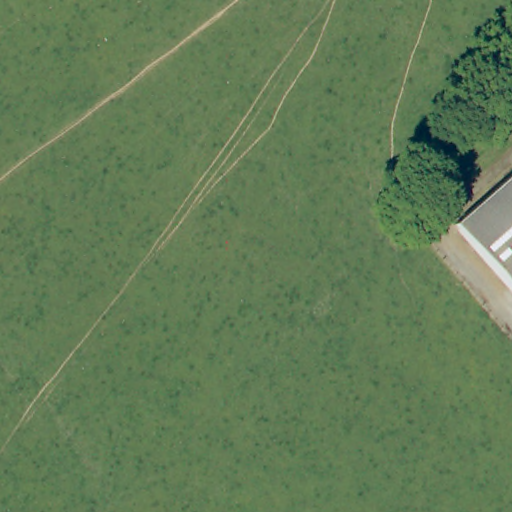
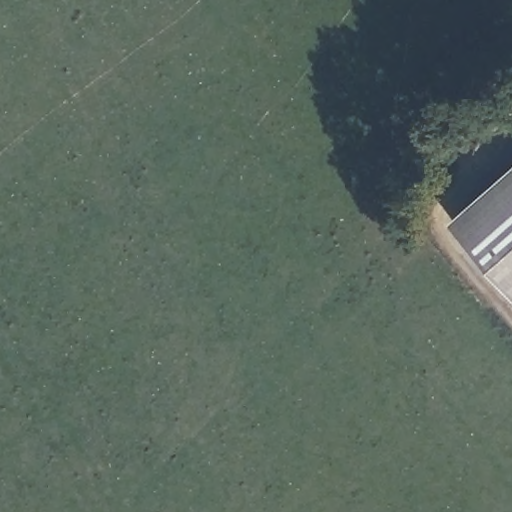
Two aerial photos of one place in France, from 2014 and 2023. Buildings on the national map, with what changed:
unchanged [(454,230),(512,177),(512,298),(454,230)]

